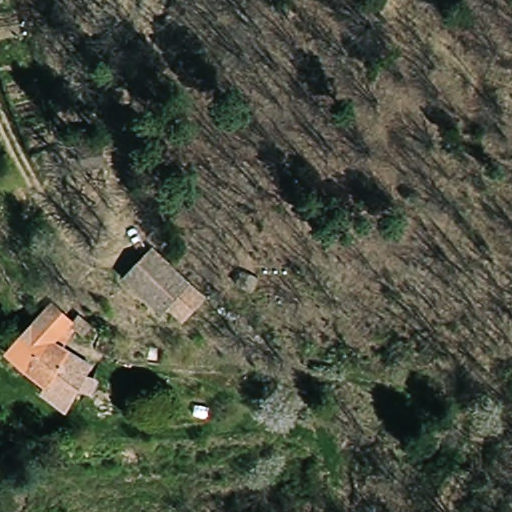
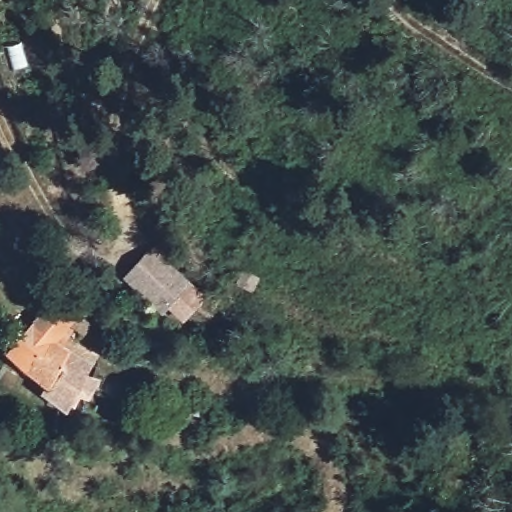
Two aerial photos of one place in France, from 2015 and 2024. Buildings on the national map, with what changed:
unchanged [(205,297),(184,327),(126,278),(149,251),(205,297)]
unchanged [(38,395),(41,387),(7,358),(48,302),(77,325),(63,346),(93,365),(88,375),(99,380),(89,398),(78,393),(67,416),(38,395)]

